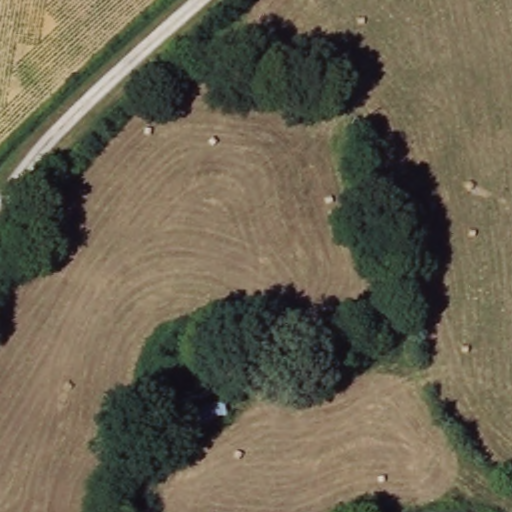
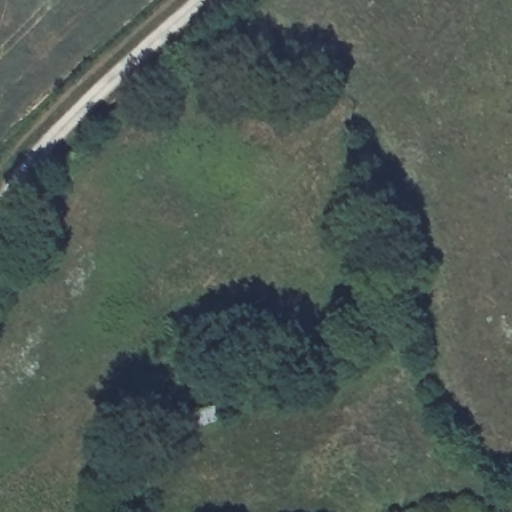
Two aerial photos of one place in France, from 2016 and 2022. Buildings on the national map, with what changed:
unchanged [(226,402),(230,416),(217,420),(220,432),(199,439),(192,414),(226,402)]

